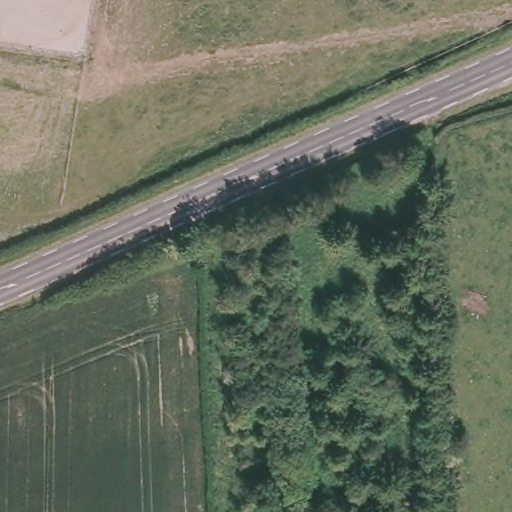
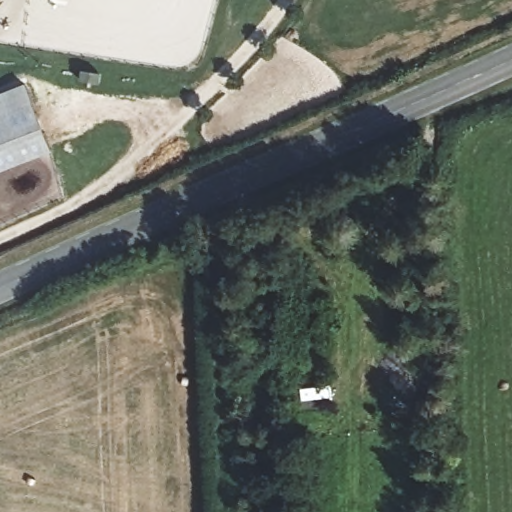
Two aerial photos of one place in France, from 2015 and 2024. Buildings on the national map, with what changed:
new [(50,149),(0,169),(0,96),(25,87),(50,149)]

